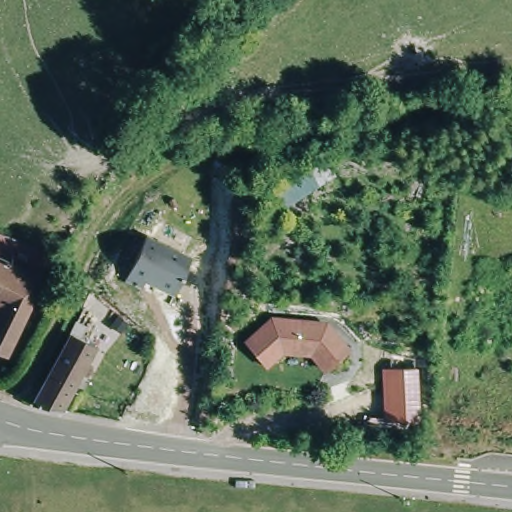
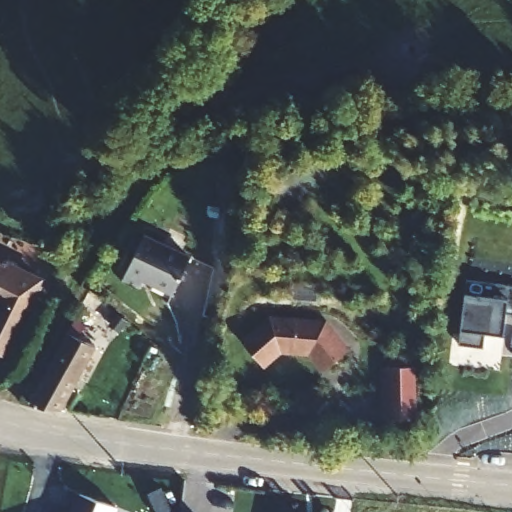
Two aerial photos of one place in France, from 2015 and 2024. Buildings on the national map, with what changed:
unchanged [(284,205),(268,178),(303,155),(320,181),(284,205)]
unchanged [(194,267),(187,280),(178,301),(148,286),(144,294),(127,286),(130,279),(147,243),(194,267)]
unchanged [(0,252),(45,275),(7,347),(0,344),(0,301),(2,298),(0,298),(0,252)]
new [(506,310),(507,301),(466,296),(467,279),(512,284),(512,311),(506,310)]
new [(507,301),(503,334),(485,332),(482,346),(461,343),(466,296),(507,301)]
unchanged [(93,322),(84,336),(95,343),(57,405),(24,400),(77,312),(93,322)]
unchanged [(309,359),(280,356),(261,370),(244,349),(272,326),(325,331),(335,344),(347,358),(332,369),(322,377),(309,359)]
unchanged [(417,368),(419,416),(382,418),(380,369),(417,368)]
new [(117,508),(116,512),(70,512),(77,493),(117,508)]

